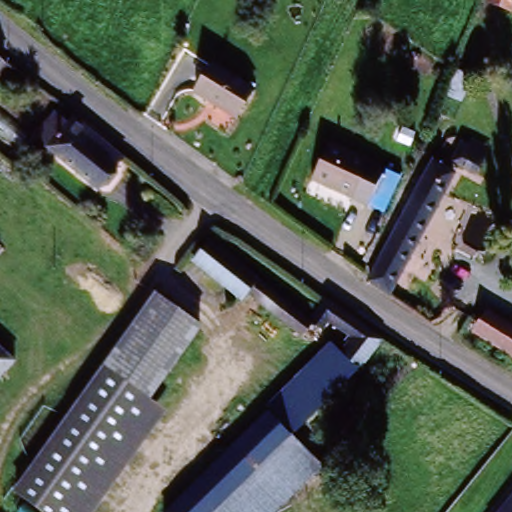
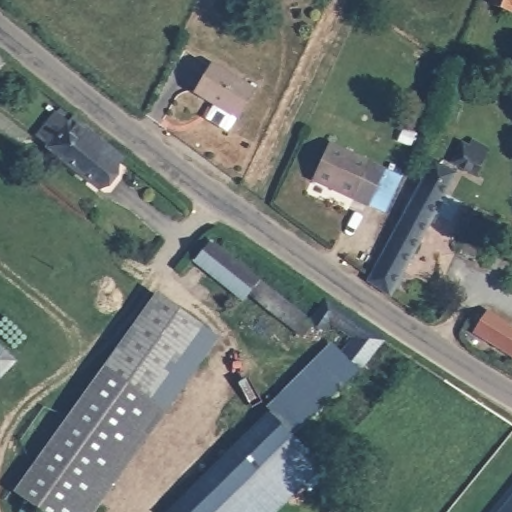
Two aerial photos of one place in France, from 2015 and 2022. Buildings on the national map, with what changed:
unchanged [(496,0),(512,0),(512,2),(508,12),(493,7),(496,0)]
unchanged [(0,72),(0,61),(5,66),(0,72)]
unchanged [(240,119),(200,94),(216,68),(256,92),(240,119)]
unchanged [(62,114),(108,150),(107,157),(89,181),(62,160),(40,142),(62,114)]
unchanged [(474,140),(495,149),(488,167),(465,157),(474,140)]
unchanged [(373,201),(359,195),(317,179),(331,145),(372,162),(386,167),(373,201)]
unchanged [(400,282),(392,293),(372,280),(430,169),(453,181),(400,282)]
unchanged [(240,294),(200,262),(215,242),(310,314),(322,301),(382,344),(358,367),(349,358),(357,347),(328,326),(315,338),(247,288),(240,294)]
unchanged [(159,296),(200,326),(148,398),(107,369),(159,296)]
unchanged [(480,333),(487,315),(512,325),(512,347),(480,333)]
unchanged [(0,374),(0,346),(15,358),(0,374)]
unchanged [(358,372),(293,434),(267,410),(265,408),(331,346),(358,372)]
unchanged [(148,398),(165,411),(97,512),(50,512),(21,491),(107,369),(148,398)]
unchanged [(293,434),(219,512),(166,512),(267,410),(293,434)]
unchanged [(280,512),(219,512),(293,434),(326,466),(280,512)]
unchanged [(503,512),(512,500),(512,512),(503,512)]

